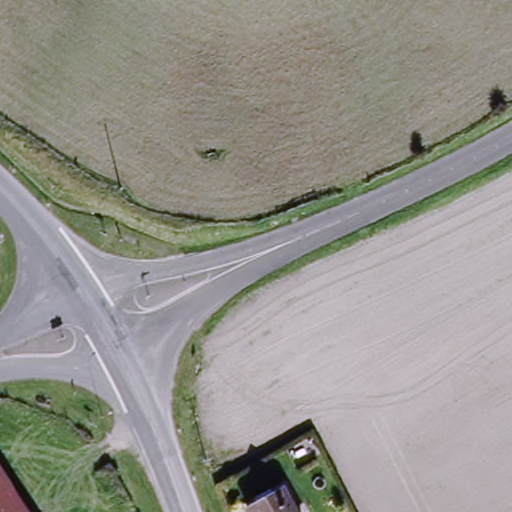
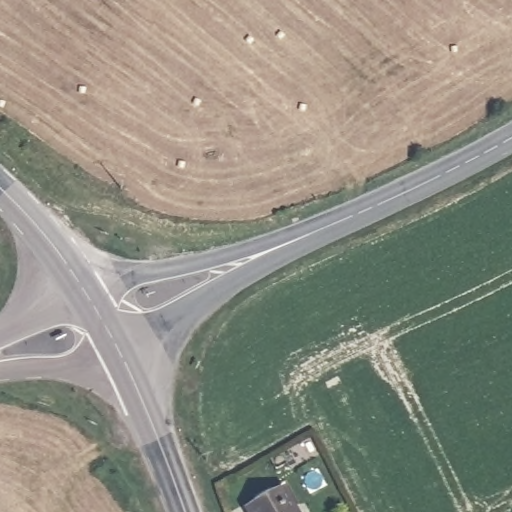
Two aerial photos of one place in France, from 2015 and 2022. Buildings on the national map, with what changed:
demolished [(0,512),(0,460),(31,512),(0,512)]
unchanged [(256,512),(285,496),(293,512),(256,512)]

